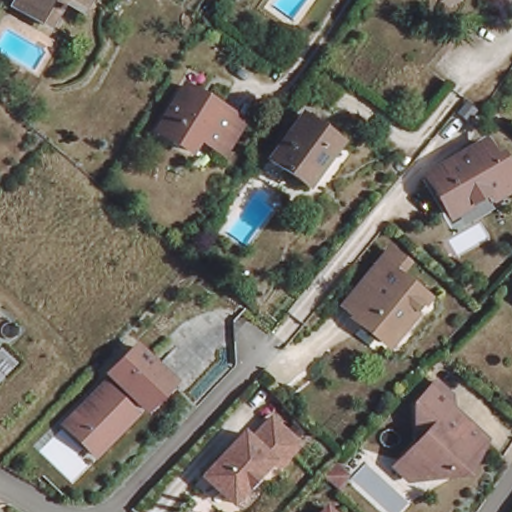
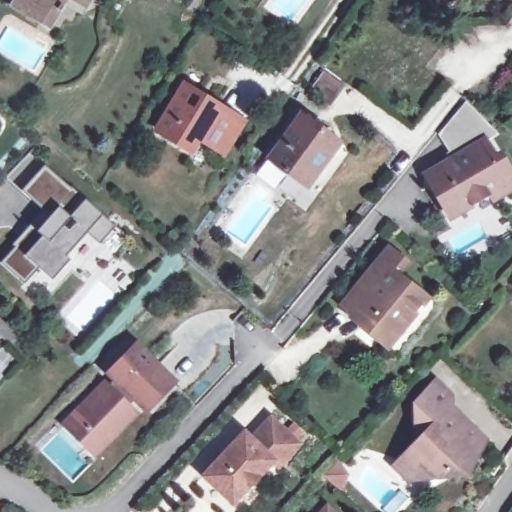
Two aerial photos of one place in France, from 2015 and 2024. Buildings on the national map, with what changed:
unchanged [(55,2),(42,26),(20,14),(5,5),(9,0),(81,0),(80,1),(73,12),(55,2)]
unchanged [(309,92),(312,87),(322,74),(341,89),(332,102),(329,107),(309,92)]
unchanged [(244,118),(225,150),(215,145),(198,135),(190,148),(157,128),(185,83),(219,102),(215,107),(232,118),(235,113),(244,118)]
new [(497,136),(484,143),(449,164),(444,155),(449,152),(439,134),(469,104),(497,136)]
unchanged [(269,161),(302,116),(337,143),(304,188),(269,161)]
unchanged [(449,164),(484,143),(494,159),(499,156),(512,179),(512,186),(492,198),(490,193),(450,215),(428,176),(449,164)]
new [(15,248),(12,245),(30,226),(35,231),(50,215),(24,192),(45,167),(85,201),(101,216),(113,226),(99,243),(85,233),(65,255),(69,259),(51,279),(38,267),(24,283),(1,262),(15,248)]
unchanged [(383,251),(395,261),(387,272),(419,298),(405,316),(401,314),(379,342),(349,317),(337,308),(357,284),(383,251)]
unchanged [(97,451),(66,420),(74,412),(105,380),(107,382),(115,374),(110,369),(137,342),(172,377),(154,396),(146,404),(136,394),(128,402),(130,404),(137,410),(97,451)]
unchanged [(394,467),(400,460),(424,434),(415,426),(414,404),(435,381),(450,395),(451,424),(453,426),(457,423),(465,422),(484,439),(479,445),(480,449),(472,452),(453,473),(449,470),(444,476),(432,477),(419,464),(412,471),(405,478),(394,467)]
unchanged [(239,428),(246,435),(266,414),(294,439),(273,461),(267,455),(227,498),(199,471),(239,428)]
unchanged [(336,512),(318,512),(327,503),(336,512)]

